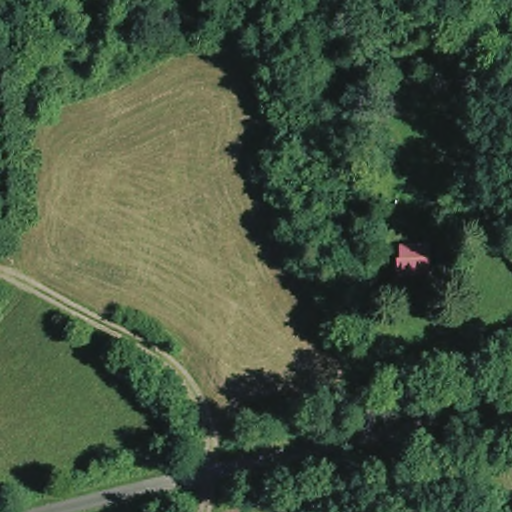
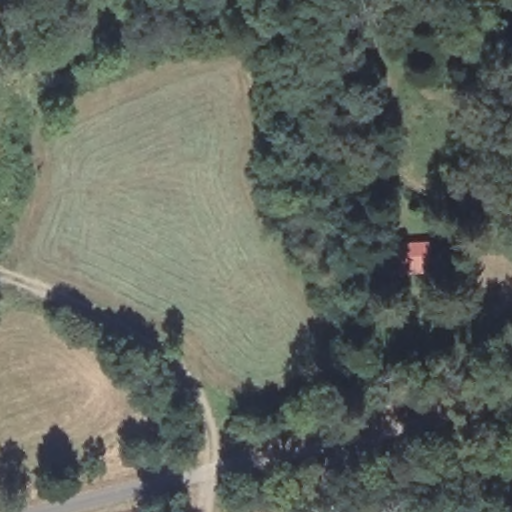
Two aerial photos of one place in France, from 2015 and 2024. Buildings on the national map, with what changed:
unchanged [(429,240),(431,277),(399,279),(396,243),(429,240)]

